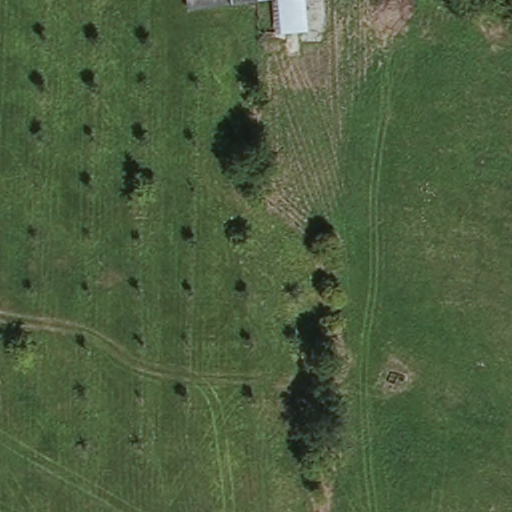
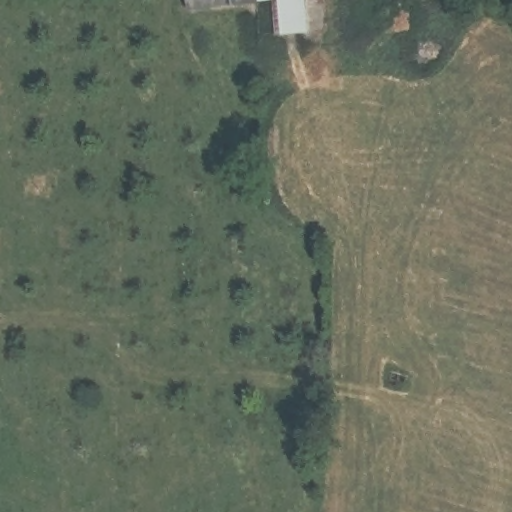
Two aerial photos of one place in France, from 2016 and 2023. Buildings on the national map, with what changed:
unchanged [(271,1),(188,7),(188,0),(271,0),(271,1)]
unchanged [(306,33),(278,34),(276,0),(304,0),(306,33)]

